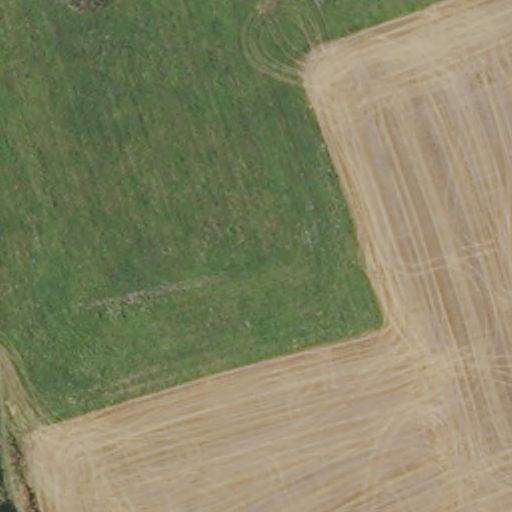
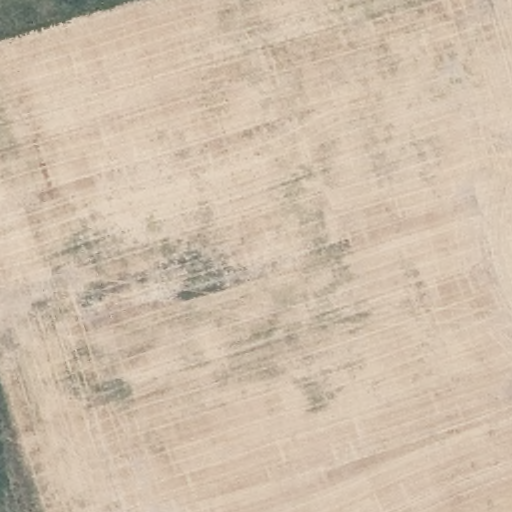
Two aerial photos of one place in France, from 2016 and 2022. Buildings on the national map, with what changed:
[]

